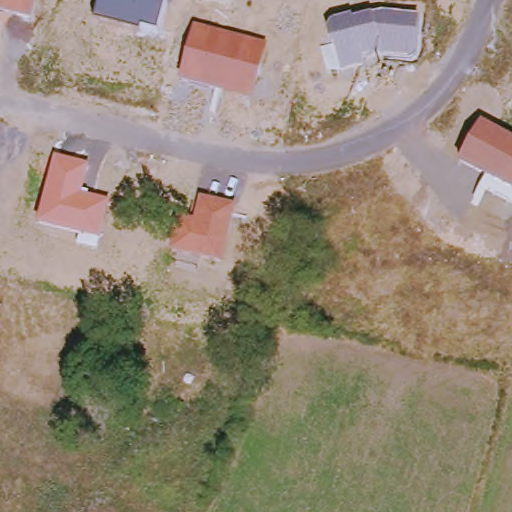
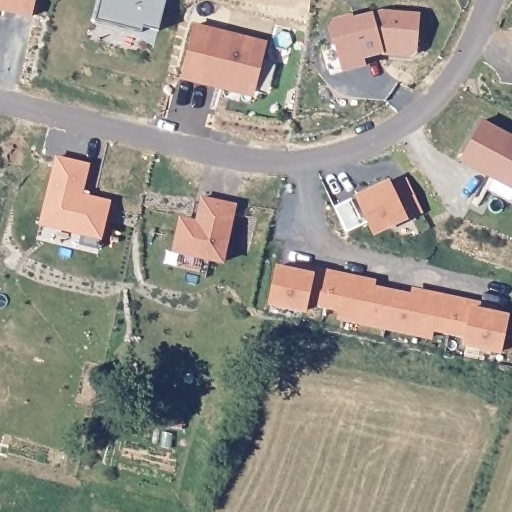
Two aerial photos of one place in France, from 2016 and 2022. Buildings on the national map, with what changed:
unchanged [(31,21),(0,14),(0,0),(36,0),(31,21)]
unchanged [(100,0),(158,0),(166,2),(156,31),(142,28),(141,32),(94,20),(100,0)]
unchanged [(381,54),(364,58),(366,65),(341,73),(334,46),(331,47),(328,30),(332,20),(352,14),(354,20),(373,13),(382,11),(420,13),(417,56),(381,54)]
unchanged [(181,80),(193,22),(267,40),(253,96),(181,80)]
unchanged [(512,135),(512,189),(459,161),(482,118),(512,135)]
unchanged [(55,157),(90,166),(83,195),(111,202),(101,242),(38,227),(55,157)]
new [(334,207),(356,196),(388,179),(392,185),(406,179),(422,213),(407,219),(374,236),(366,221),(345,231),(334,207)]
unchanged [(236,204),(223,267),(169,254),(178,218),(194,221),(199,197),(236,204)]
new [(276,265),(290,268),(291,262),(376,280),(375,286),(412,293),(413,287),(499,306),(499,311),(509,314),(501,354),(463,345),(464,338),(434,332),(432,340),(337,320),(339,312),(307,305),(306,313),(269,305),(276,265)]

